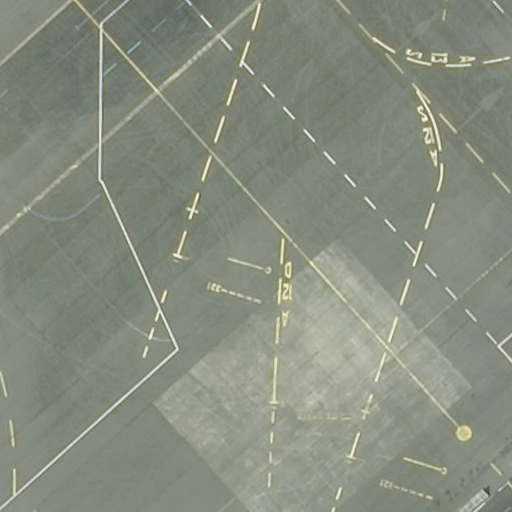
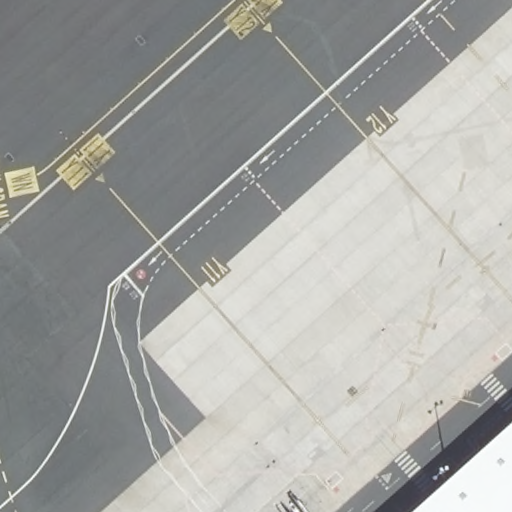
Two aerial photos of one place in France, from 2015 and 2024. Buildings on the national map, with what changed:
new [(418,512),(512,427),(512,512),(418,512)]

